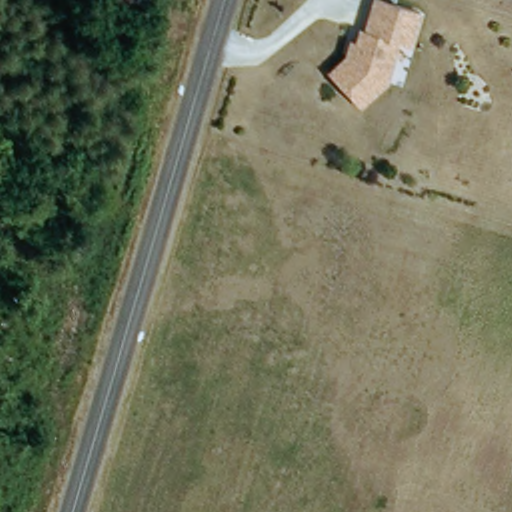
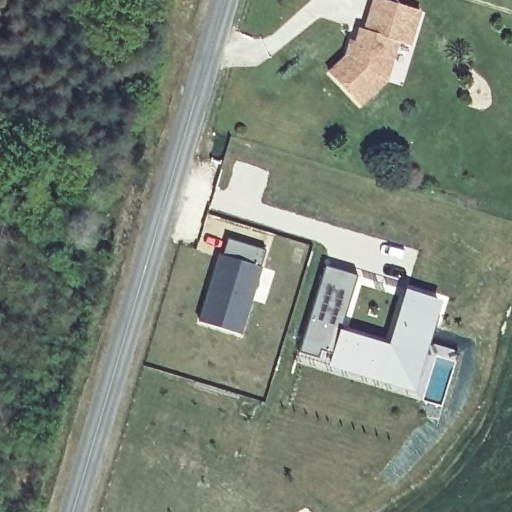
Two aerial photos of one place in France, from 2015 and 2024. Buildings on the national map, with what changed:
unchanged [(385,91),(358,116),(328,83),(352,60),(359,39),(364,41),(374,8),(419,22),(408,56),(413,57),(401,96),(385,91)]
new [(222,253),(227,237),(265,248),(261,266),(264,268),(242,334),(197,321),(217,252),(222,253)]
new [(325,265),(357,275),(342,323),(338,328),(330,354),(323,353),(321,358),(299,352),(325,265)]
new [(330,354),(338,328),(387,342),(405,288),(446,297),(415,392),(327,363),(330,354)]

